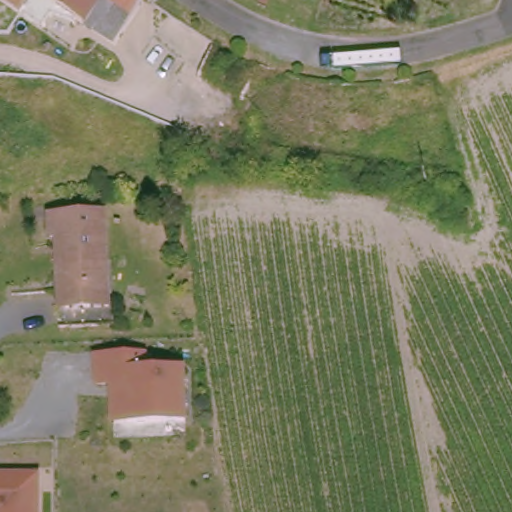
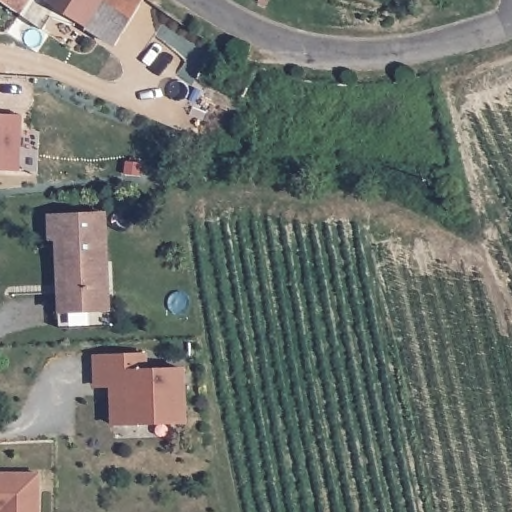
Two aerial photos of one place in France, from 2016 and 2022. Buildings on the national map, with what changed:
unchanged [(55,1),(60,6),(48,24),(27,9),(13,0),(53,0),(55,1)]
unchanged [(121,42),(60,6),(55,1),(56,0),(147,0),(121,42)]
new [(0,114),(22,114),(20,171),(0,171),(0,114)]
unchanged [(104,211),(108,320),(66,322),(62,237),(50,237),(49,215),(104,211)]
unchanged [(110,385),(94,385),(92,351),(147,350),(148,365),(187,364),(188,419),(112,421),(110,385)]
unchanged [(45,512),(0,512),(0,474),(44,472),(45,512)]

